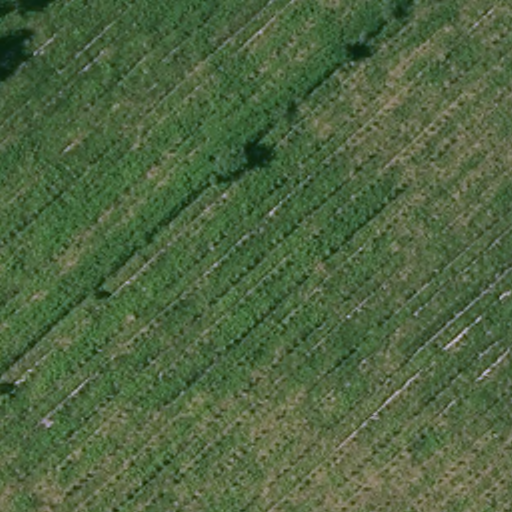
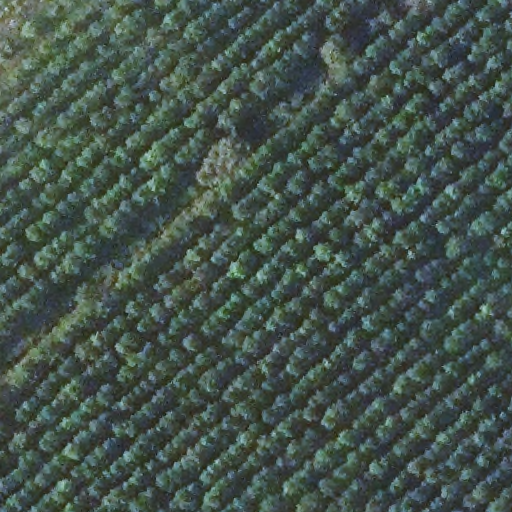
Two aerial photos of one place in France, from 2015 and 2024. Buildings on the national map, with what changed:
[]

